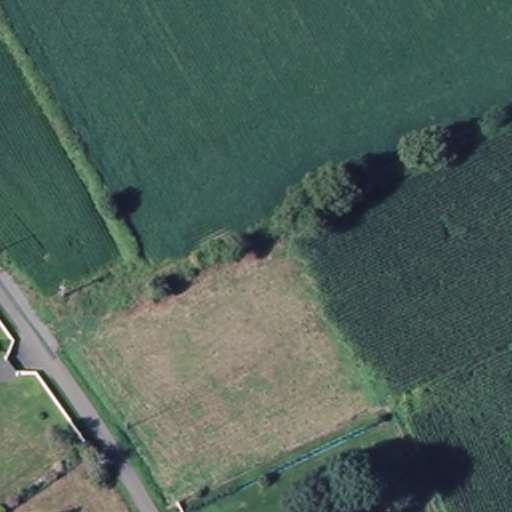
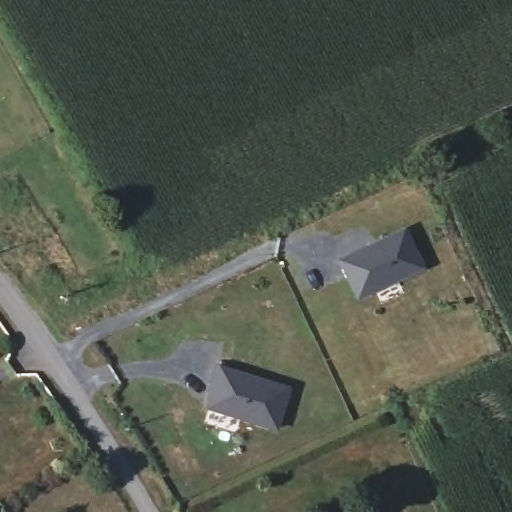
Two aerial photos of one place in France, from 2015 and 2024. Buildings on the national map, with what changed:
new [(355,295),(338,259),(403,228),(420,265),(355,295)]
new [(275,428),(206,407),(213,382),(210,381),(215,365),(287,387),(275,428)]

